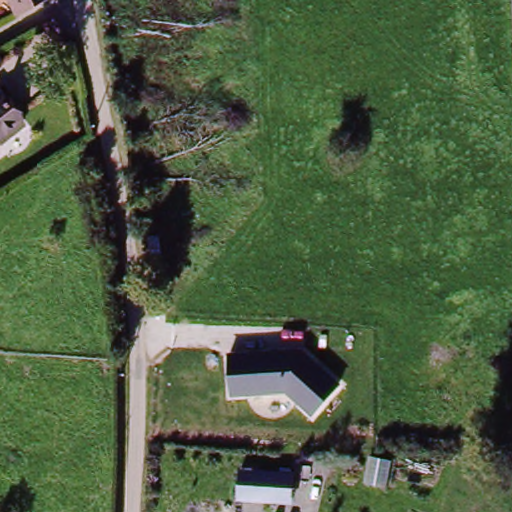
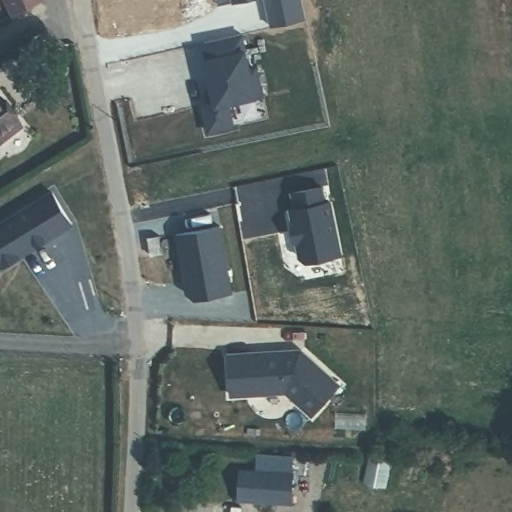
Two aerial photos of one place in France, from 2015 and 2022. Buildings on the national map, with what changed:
unchanged [(0,0),(26,0),(0,12),(0,0)]
new [(252,68),(259,67),(265,94),(230,101),(235,124),(210,130),(205,102),(217,99),(209,58),(210,57),(207,41),(245,33),(252,68)]
new [(210,89),(215,88),(217,99),(213,100),(210,89)]
unchanged [(22,118),(0,134),(0,96),(3,94),(22,118)]
new [(325,185),(327,200),(333,199),(342,255),(307,262),(299,259),(287,208),(292,207),(291,190),(325,185)]
new [(73,226),(4,269),(0,263),(0,227),(52,194),(73,226)]
new [(222,229),(233,289),(190,297),(179,237),(222,229)]
unchanged [(227,354),(301,349),(340,386),(309,418),(283,394),(229,398),(227,354)]
unchanged [(238,472),(293,474),(291,506),(237,504),(238,472)]

